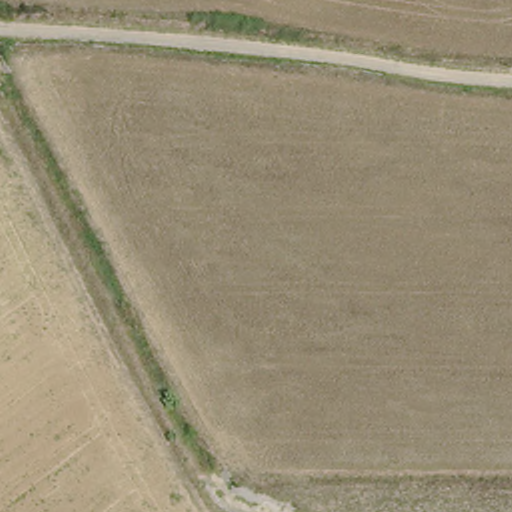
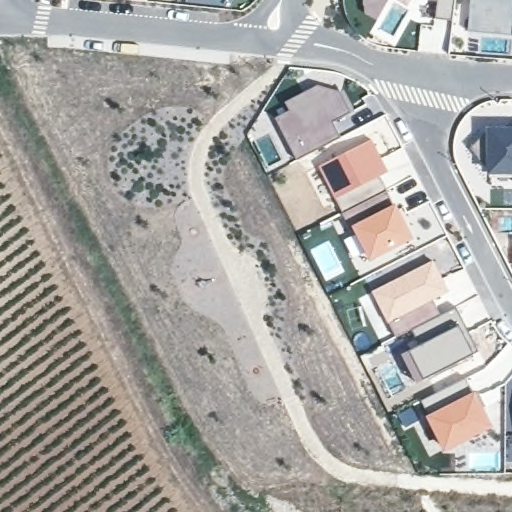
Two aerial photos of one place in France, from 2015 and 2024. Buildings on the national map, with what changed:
new [(361,0),(389,0),(375,22),(363,14),(363,8),(362,7),(361,0)]
new [(397,0),(409,0),(406,5),(397,0)]
new [(435,21),(437,4),(430,3),(426,0),(455,0),(452,24),(435,21)]
new [(512,0),(512,36),(507,36),(467,32),(470,0),(512,0)]
new [(342,135),(295,159),(274,118),(287,110),(284,101),(318,84),(342,91),(343,90),(354,110),(349,114),(357,128),(342,135)]
new [(512,129),(512,169),(494,169),(472,146),(490,129),(512,129)]
new [(387,172),(379,177),(392,204),(354,223),(350,224),(319,166),(370,140),(387,172)]
new [(354,223),(395,202),(417,239),(369,261),(350,224),(354,223)]
new [(434,259),(450,292),(434,299),(440,314),(395,337),(392,333),(370,293),(434,259)]
new [(456,309),(478,351),(475,353),(460,324),(420,344),(414,330),(456,309)]
new [(460,324),(475,353),(415,382),(402,354),(460,324)]
new [(427,414),(447,404),(476,390),(495,428),(444,453),(425,415),(427,414)]

